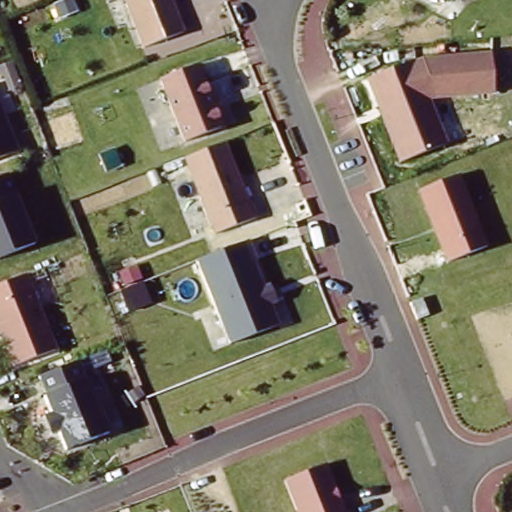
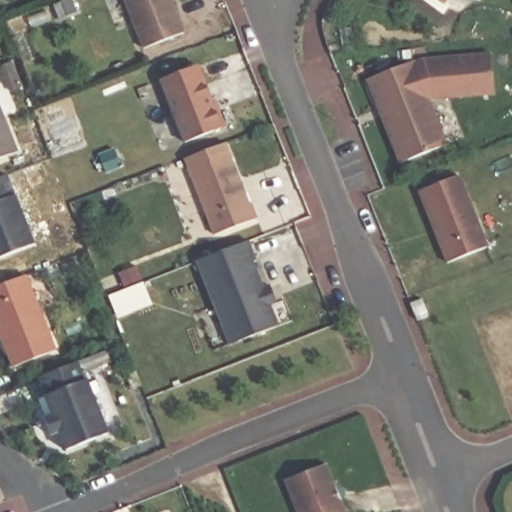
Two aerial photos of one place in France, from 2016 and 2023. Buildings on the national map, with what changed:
unchanged [(186,32),(144,48),(125,0),(175,0),(186,32)]
unchanged [(445,5),(438,0),(448,0),(445,5)]
unchanged [(415,59),(491,53),(494,95),(430,99),(449,146),(399,164),(365,79),(415,59)]
unchanged [(200,65),(223,129),(185,143),(160,80),(200,65)]
unchanged [(0,158),(0,109),(17,151),(0,158)]
unchanged [(226,142),(255,220),(215,236),(185,158),(226,142)]
unchanged [(15,196),(35,246),(0,258),(0,178),(6,176),(15,196)]
unchanged [(489,250),(449,267),(418,192),(459,176),(489,250)]
unchanged [(248,241),(265,286),(270,284),(277,303),(272,304),(280,326),(230,345),(197,259),(248,241)]
unchanged [(11,367),(0,337),(0,284),(24,275),(53,351),(11,367)]
unchanged [(75,365),(86,379),(94,376),(112,417),(106,421),(111,431),(70,450),(64,434),(52,439),(46,417),(52,415),(46,395),(50,395),(41,377),(75,365)]
unchanged [(326,464),(345,512),(297,512),(285,481),(326,464)]
unchanged [(349,512),(345,512),(348,511),(349,512)]

